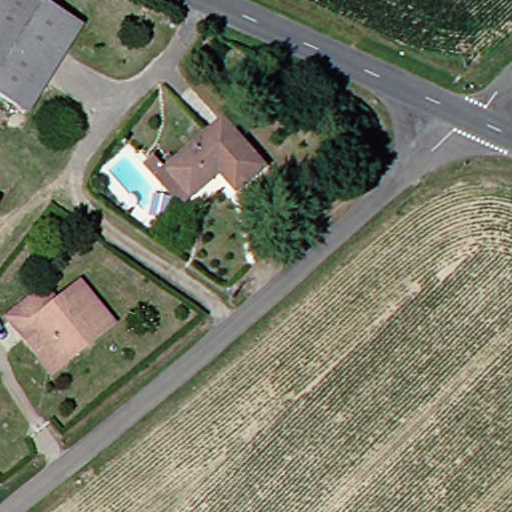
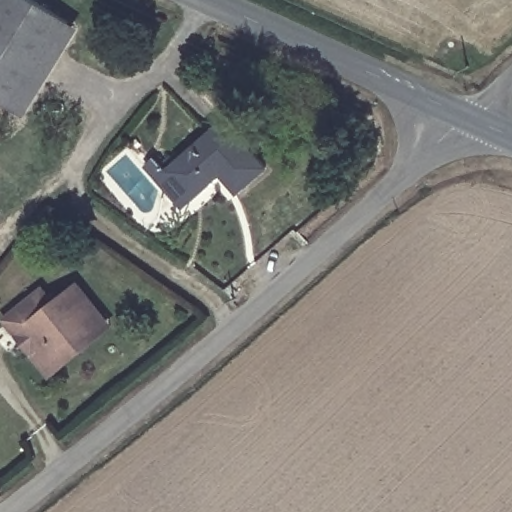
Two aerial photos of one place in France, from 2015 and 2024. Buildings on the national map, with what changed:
unchanged [(5,117),(0,114),(0,0),(49,0),(70,13),(5,117)]
unchanged [(146,179),(161,168),(221,121),(259,168),(232,190),(216,171),(183,197),(169,208),(146,179)]
unchanged [(17,329),(9,334),(0,323),(0,318),(37,290),(48,304),(73,284),(99,319),(42,364),(17,329)]
unchanged [(105,326),(40,376),(9,334),(17,329),(42,364),(99,319),(105,326)]

